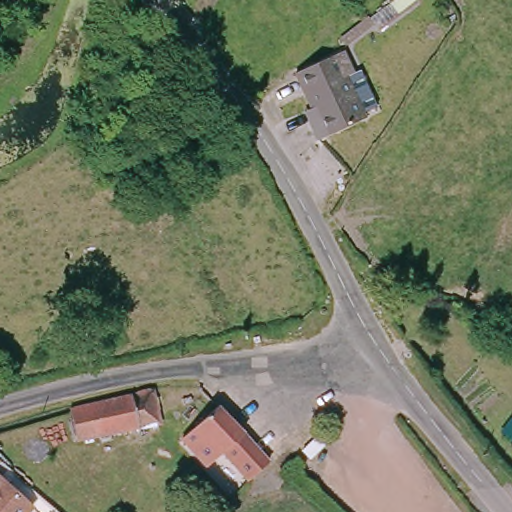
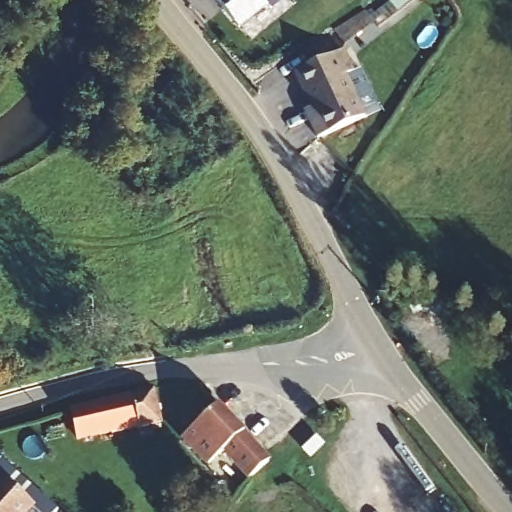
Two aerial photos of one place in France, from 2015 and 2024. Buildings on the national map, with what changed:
new [(270,3),(242,26),(220,0),(281,0),(273,6),(270,3)]
unchanged [(350,72),(370,121),(316,144),(308,124),(317,120),(305,90),(350,72)]
unchanged [(152,394),(159,425),(112,435),(77,443),(70,410),(152,394)]
unchanged [(216,406),(269,460),(247,481),(240,486),(232,476),(240,469),(224,449),(208,462),(184,434),(216,406)]
unchanged [(0,470),(7,476),(38,504),(31,512),(0,512),(0,470)]

